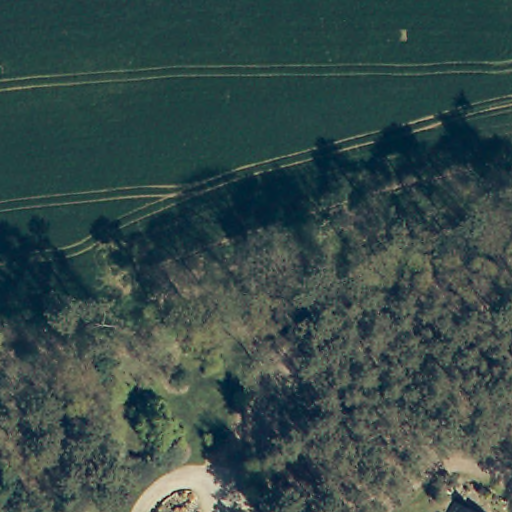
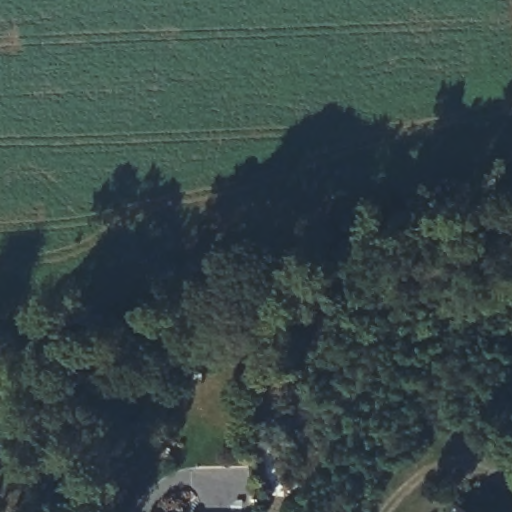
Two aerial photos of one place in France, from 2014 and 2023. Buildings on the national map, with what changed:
unchanged [(471,512),(452,512),(457,504),(471,512)]

